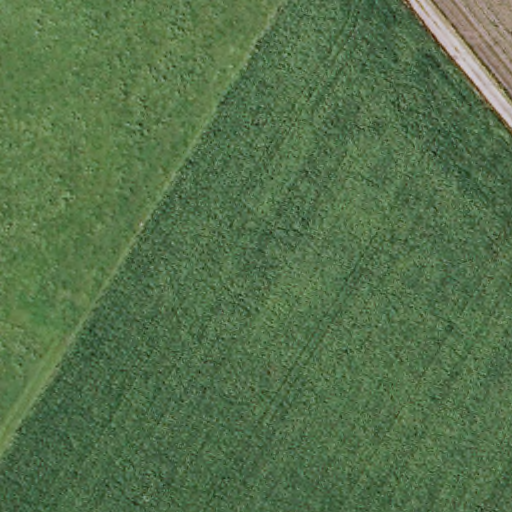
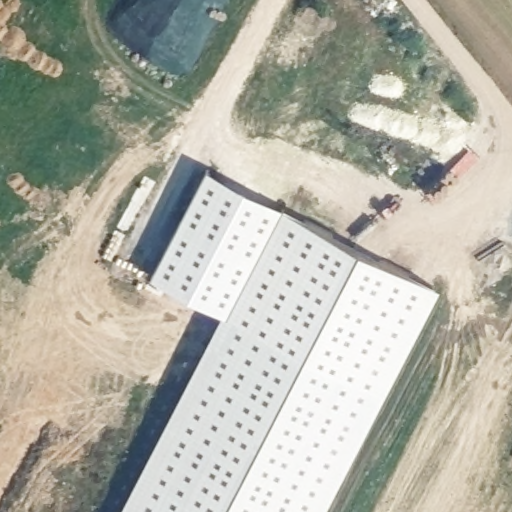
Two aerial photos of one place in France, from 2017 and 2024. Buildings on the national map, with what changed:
new [(207,166),(440,287),(324,512),(118,512),(222,312),(152,276),(207,166)]

